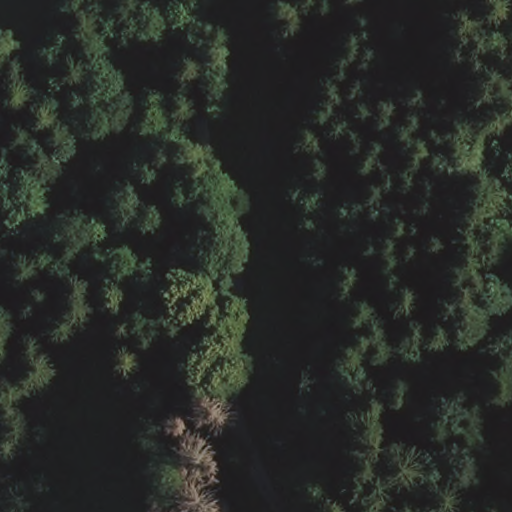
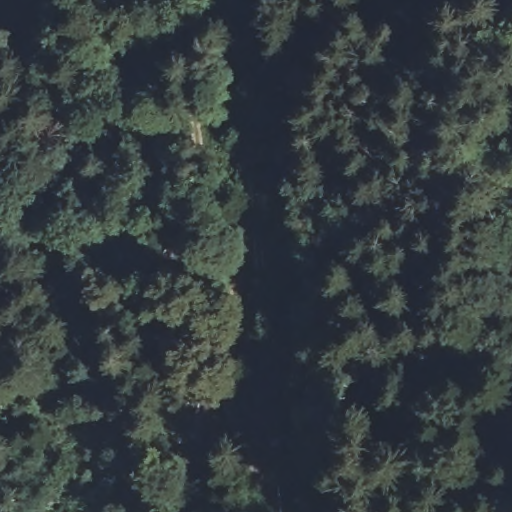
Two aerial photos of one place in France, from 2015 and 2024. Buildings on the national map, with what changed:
unchanged [(216,251),(202,283),(151,260),(166,227),(216,251)]

